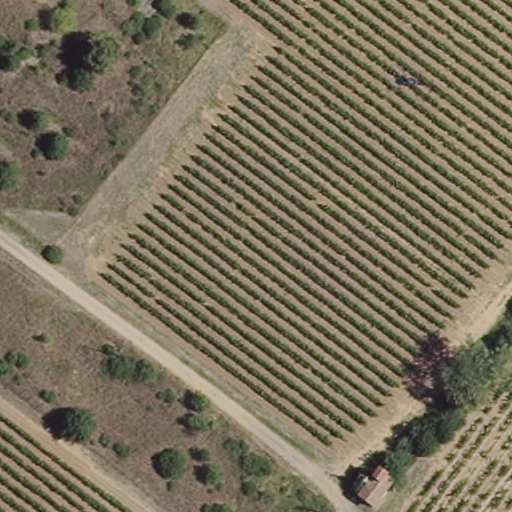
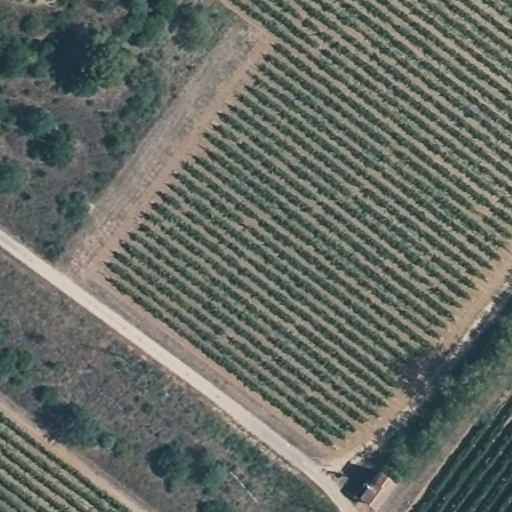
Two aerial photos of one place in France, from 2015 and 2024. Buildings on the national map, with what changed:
unchanged [(389,480),(396,485),(377,509),(363,497),(381,474),(389,480)]

